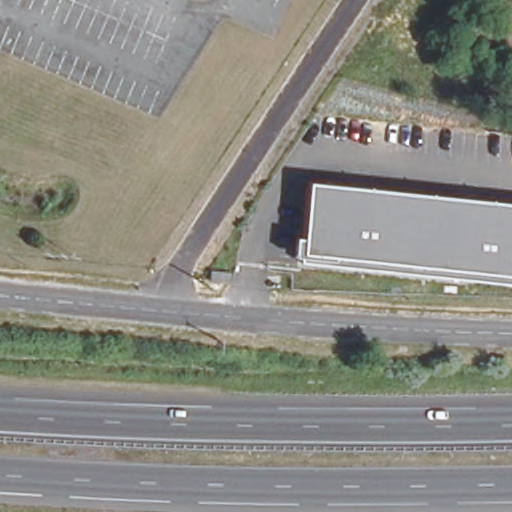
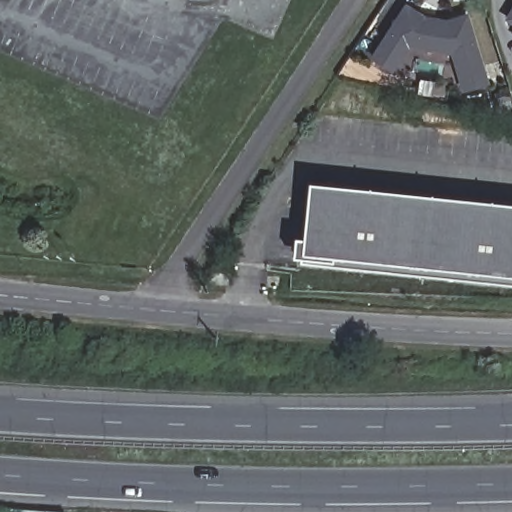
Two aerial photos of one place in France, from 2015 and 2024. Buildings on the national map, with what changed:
new [(403,2),(422,14),(443,18),(467,12),(487,82),(460,90),(449,52),(405,45),(390,73),(368,59),(403,2)]
new [(503,18),(512,3),(512,23),(503,18)]
unchanged [(298,262),(306,183),(512,203),(512,282),(298,262)]

